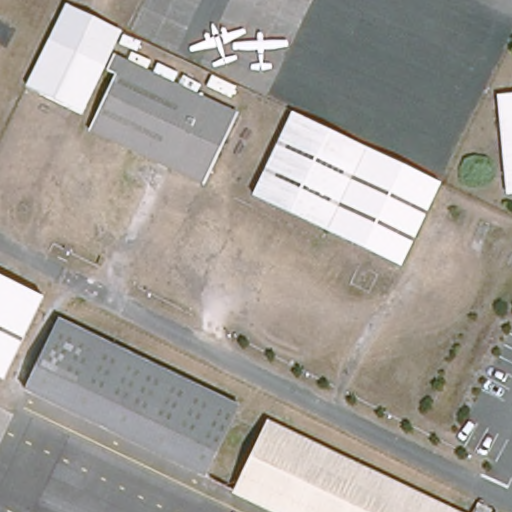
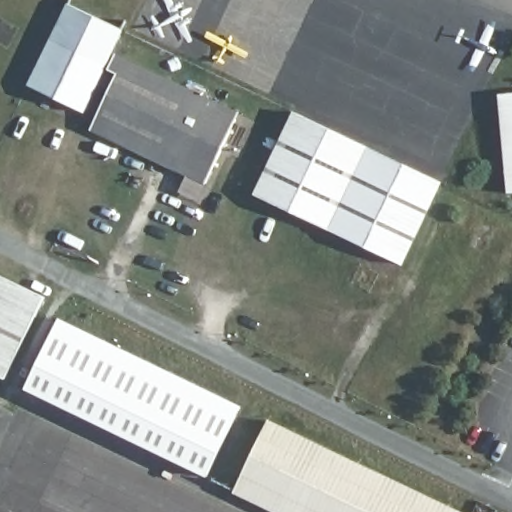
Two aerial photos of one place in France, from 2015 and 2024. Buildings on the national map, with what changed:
unchanged [(104,71),(81,114),(23,83),(67,2),(122,26),(112,49),(104,71)]
unchanged [(86,135),(115,80),(104,71),(112,49),(242,107),(200,190),(86,135)]
unchanged [(505,182),(498,95),(512,94),(512,194),(506,195),(505,182)]
unchanged [(253,193),(292,111),(439,179),(401,262),(253,193)]
unchanged [(14,377),(0,371),(0,275),(50,298),(14,377)]
unchanged [(203,477),(88,419),(42,395),(27,388),(64,315),(77,322),(121,344),(240,404),(203,477)]
unchanged [(267,417),(469,512),(275,512),(232,492),(267,417)]

